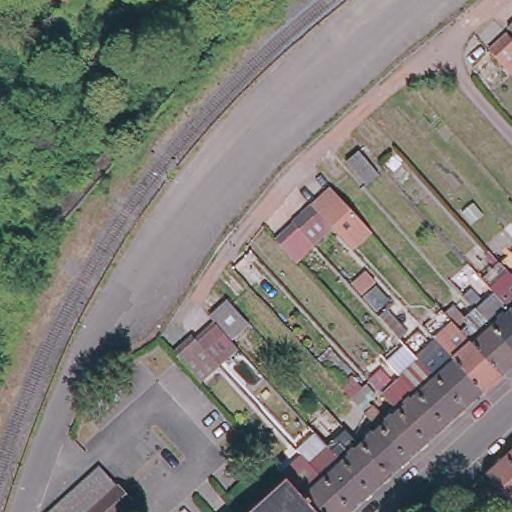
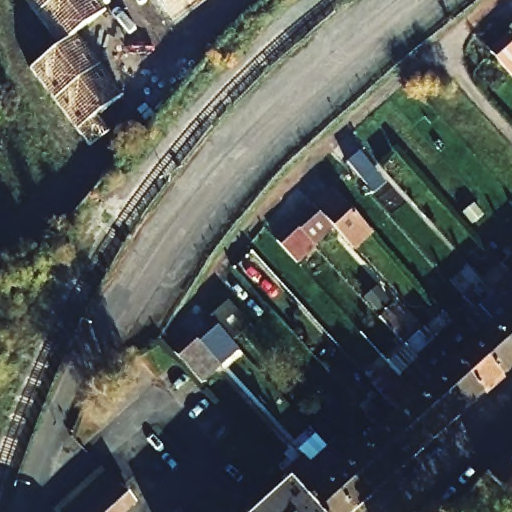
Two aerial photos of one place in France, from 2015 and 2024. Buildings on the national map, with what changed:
new [(104,10),(73,34),(122,96),(97,115),(108,130),(88,145),(29,68),(58,47),(22,0),(96,0),(104,10)]
new [(172,21),(155,0),(201,0),(172,21)]
unchanged [(512,36),(507,29),(512,24),(512,36)]
unchanged [(512,77),(490,52),(509,36),(512,40),(512,77)]
unchanged [(384,173),(370,185),(350,162),(364,150),(384,173)]
demolished [(87,198),(76,188),(107,152),(117,163),(87,198)]
unchanged [(295,265),(275,242),(294,224),(312,208),(331,192),(349,212),(368,233),(349,249),(330,228),(312,245),(315,248),(295,265)]
demolished [(34,259),(29,265),(20,255),(38,233),(48,243),(34,259)]
unchanged [(505,287),(512,282),(512,311),(495,291),(502,284),(505,287)]
unchanged [(226,304),(245,325),(232,336),(214,314),(226,304)]
unchanged [(490,306),(502,321),(512,312),(512,350),(493,329),(480,315),(490,306)]
unchanged [(512,373),(505,379),(462,331),(470,324),(483,338),(493,329),(512,350),(512,373)]
unchanged [(215,325),(240,352),(220,368),(221,369),(202,386),(177,359),(197,342),(215,325)]
unchanged [(457,326),(462,331),(505,379),(485,397),(438,342),(457,326)]
unchanged [(485,397),(467,413),(437,379),(425,365),(419,359),(438,342),(485,397)]
unchanged [(437,379),(467,413),(449,430),(406,382),(415,374),(425,365),(437,379)]
unchanged [(449,430),(430,446),(400,412),(400,413),(387,398),(406,382),(449,430)]
unchanged [(369,415),(377,408),(389,422),(400,413),(400,412),(430,446),(411,464),(381,429),(369,415)]
unchanged [(359,424),(371,438),(381,429),(411,464),(393,480),(350,432),(359,424)]
unchanged [(350,432),(393,480),(374,497),(331,449),(350,432)]
unchanged [(302,454),(322,438),(331,449),(374,497),(357,512),(352,512),(309,462),(302,454)]
unchanged [(512,457),(512,462),(510,459),(512,457)]
unchanged [(510,459),(512,462),(512,501),(490,477),(510,459)]
unchanged [(292,474),(293,475),(309,462),(352,512),(321,512),(294,482),(289,476),(292,474)]
unchanged [(116,487),(89,512),(51,512),(99,467),(116,487)]
unchanged [(321,512),(261,512),(294,482),(321,512)]
unchanged [(132,505),(125,512),(89,512),(116,487),(132,505)]

